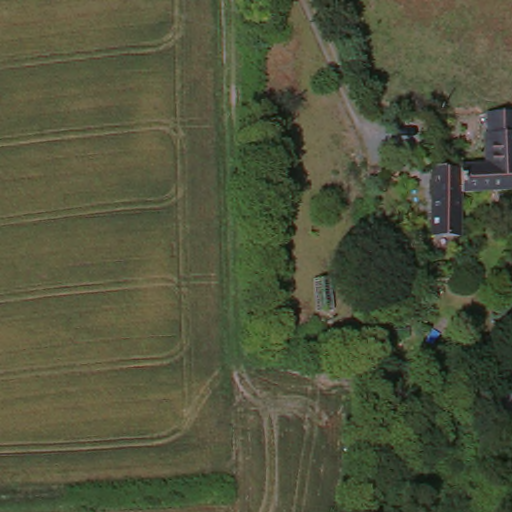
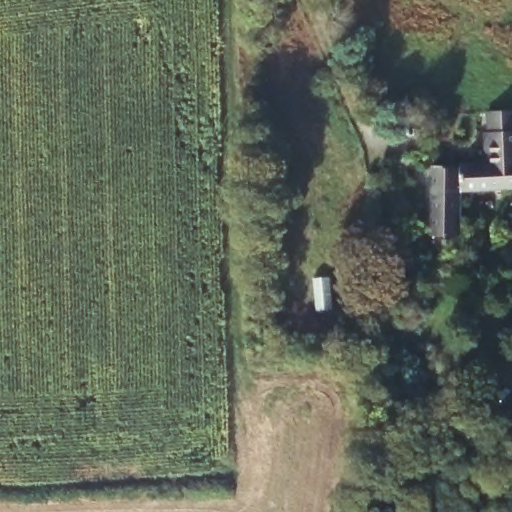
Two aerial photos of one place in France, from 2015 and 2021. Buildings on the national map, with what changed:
unchanged [(486,117),(511,119),(512,141),(512,162),(487,161),(486,117)]
unchanged [(462,249),(428,248),(433,172),(512,171),(512,197),(467,200),(462,249)]
unchanged [(508,231),(512,232),(512,250),(502,248),(508,231)]
unchanged [(329,321),(306,321),(307,284),(327,283),(329,321)]

